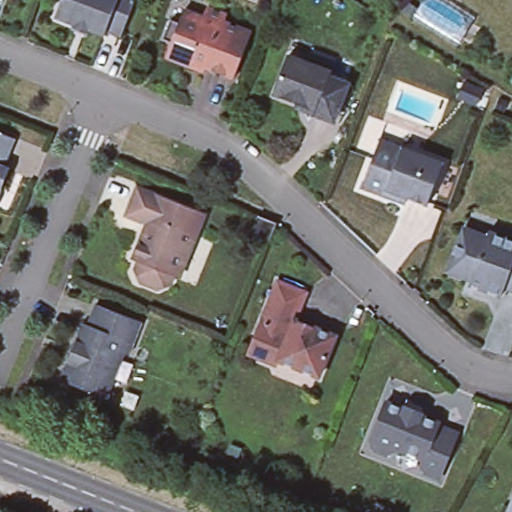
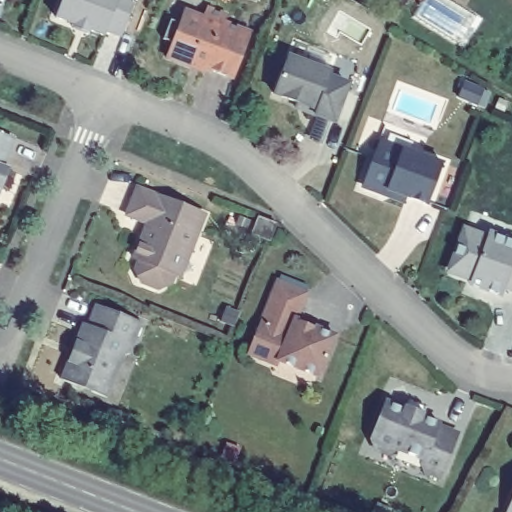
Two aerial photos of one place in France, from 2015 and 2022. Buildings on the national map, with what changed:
unchanged [(126,35),(110,30),(107,40),(58,22),(67,0),(137,0),(126,35)]
unchanged [(206,16),(211,6),(230,14),(226,21),(254,31),(233,81),(168,57),(173,44),(166,40),(173,20),(183,21),(184,13),(206,16)]
unchanged [(351,83),(335,122),(276,98),(289,56),(351,83)]
unchanged [(5,168),(13,173),(6,193),(0,191),(0,132),(18,139),(5,168)]
unchanged [(447,163),(431,214),(363,192),(381,140),(447,163)]
unchanged [(209,215),(183,286),(164,295),(141,285),(135,264),(148,230),(127,221),(138,186),(209,215)]
unchanged [(512,242),(512,291),(511,291),(505,300),(449,275),(466,229),(512,242)]
unchanged [(269,279),(308,295),(296,322),(338,340),(319,378),(251,356),(269,279)]
unchanged [(109,402),(62,383),(96,303),(144,323),(109,402)]
unchanged [(417,470),(421,457),(364,440),(379,398),(439,416),(437,423),(461,428),(444,478),(417,470)]
unchanged [(508,512),(512,503),(512,512),(508,512)]

